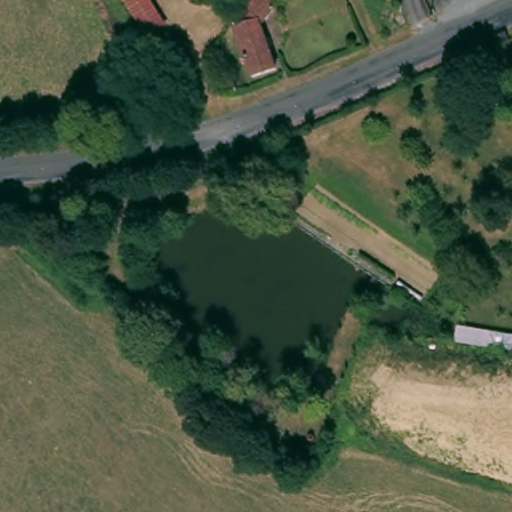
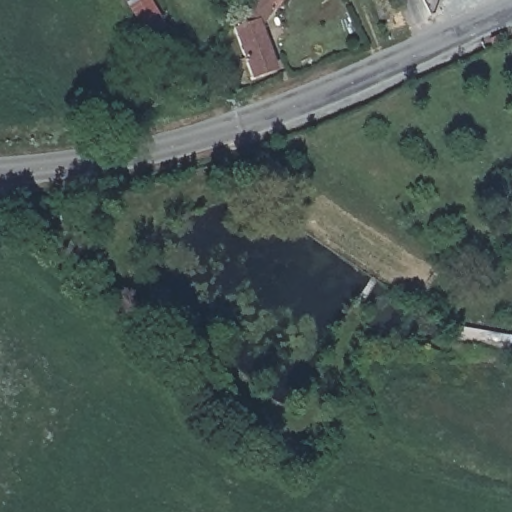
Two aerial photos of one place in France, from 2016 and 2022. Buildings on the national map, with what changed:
unchanged [(171,21),(153,37),(128,0),(157,0),(171,21)]
unchanged [(247,10),(254,0),(280,0),(265,19),(261,20),(275,61),(250,70),(234,21),(254,14),(247,10)]

